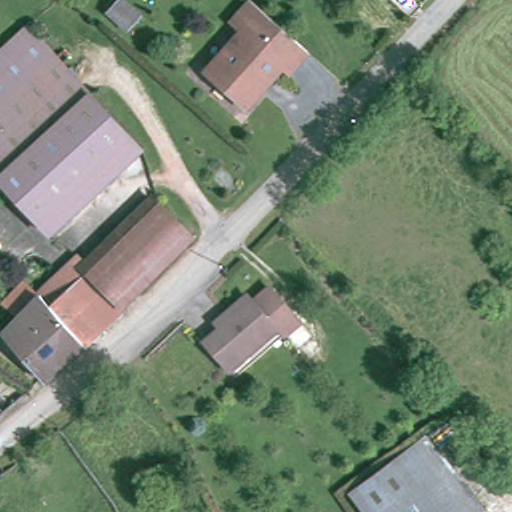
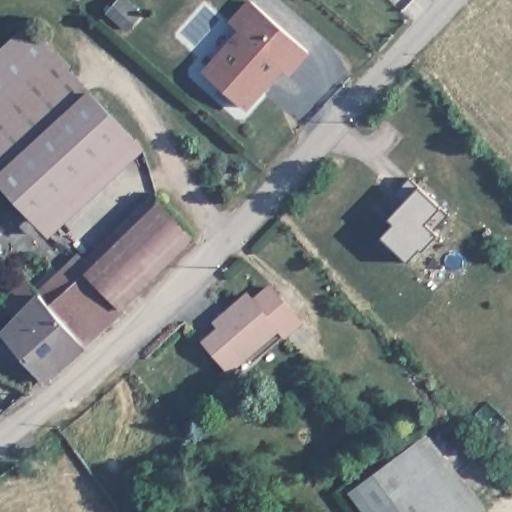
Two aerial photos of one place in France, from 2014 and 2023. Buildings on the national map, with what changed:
unchanged [(133,25),(114,6),(120,0),(134,0),(146,11),(133,25)]
unchanged [(249,106),(208,69),(248,26),(238,17),(253,0),(255,0),(265,9),(311,52),(291,73),(286,67),(249,106)]
unchanged [(140,159),(53,236),(0,176),(0,55),(33,25),(109,110),(147,152),(140,159)]
unchanged [(247,180),(238,189),(220,170),(229,161),(247,180)]
new [(393,247),(391,251),(379,240),(381,235),(394,222),(389,218),(404,202),(394,193),(409,177),(419,185),(441,207),(426,224),(438,234),(424,250),(421,247),(409,262),(393,247)]
unchanged [(91,272),(98,266),(164,203),(199,236),(124,306),(91,272)]
unchanged [(88,276),(120,310),(124,315),(49,377),(6,331),(87,255),(98,266),(91,272),(88,276)]
unchanged [(261,291),(291,326),(273,341),(265,332),(243,306),(261,291)]
unchanged [(216,372),(194,343),(218,323),(214,319),(237,300),(243,306),(265,332),(216,372)]
unchanged [(351,493),(414,448),(431,436),(488,512),(365,512),(351,493)]

